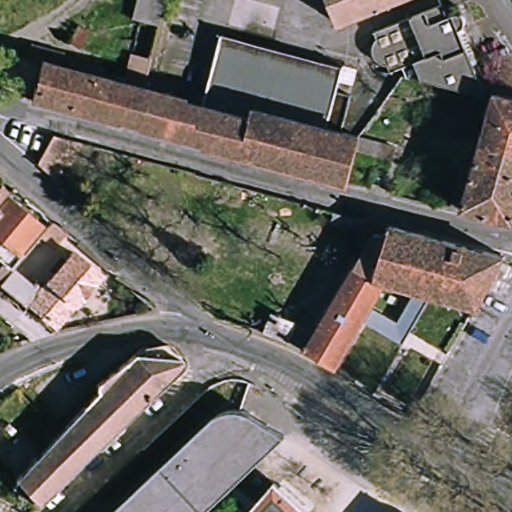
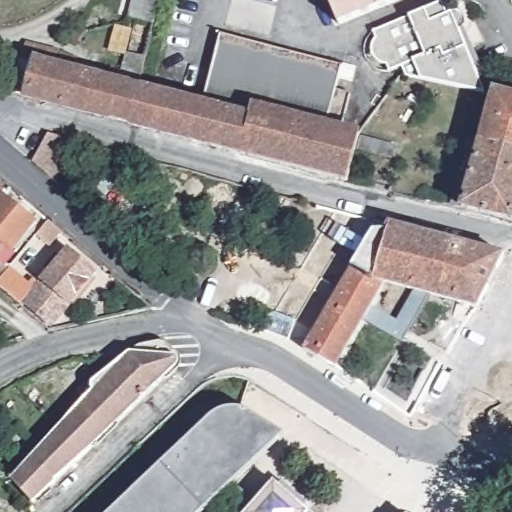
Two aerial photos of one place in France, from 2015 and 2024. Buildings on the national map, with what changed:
unchanged [(125,29),(122,27),(129,0),(160,0),(152,37),(125,29)]
unchanged [(332,0),(398,0),(340,21),(332,0)]
unchanged [(420,81),(413,64),(383,74),(380,65),(365,65),(361,62),(359,57),(360,55),(363,46),(370,39),(366,30),(437,4),(472,96),(420,81)]
unchanged [(125,29),(152,37),(140,96),(111,89),(125,29)]
unchanged [(75,54),(71,72),(71,77),(111,89),(140,96),(133,128),(72,112),(42,103),(0,95),(0,77),(5,65),(17,67),(23,44),(50,49),(71,53),(75,54)]
unchanged [(248,120),(245,125),(205,114),(222,50),(345,86),(335,122),(348,125),(342,146),(248,120)]
unchanged [(257,162),(133,128),(140,96),(205,114),(245,125),(248,120),(342,146),(358,150),(349,189),(257,162)]
unchanged [(512,232),(456,218),(495,104),(512,109),(512,232)]
unchanged [(58,135),(63,136),(85,142),(64,186),(42,167),(58,135)]
unchanged [(26,221),(15,235),(6,229),(0,237),(0,198),(26,221)]
unchanged [(349,268),(361,229),(380,235),(383,224),(496,257),(502,260),(480,304),(470,302),(375,277),(342,373),(315,362),(349,268)]
unchanged [(47,231),(58,240),(60,242),(50,253),(39,242),(47,231)]
unchanged [(6,242),(17,252),(20,249),(21,249),(46,267),(60,252),(92,278),(54,324),(0,280),(0,250),(6,242)]
unchanged [(90,391),(88,382),(136,346),(151,343),(160,342),(167,345),(171,347),(173,351),(175,355),(175,360),(175,361),(175,362),(171,368),(166,373),(163,376),(125,412),(100,436),(84,419),(73,408),(90,391)]
unchanged [(30,502),(8,478),(54,429),(73,408),(84,419),(98,435),(100,436),(30,502)]
unchanged [(207,418),(220,413),(230,411),(245,411),(283,435),(201,512),(109,512),(207,418)]
unchanged [(271,480),(309,510),(312,512),(248,512),(271,480)]

